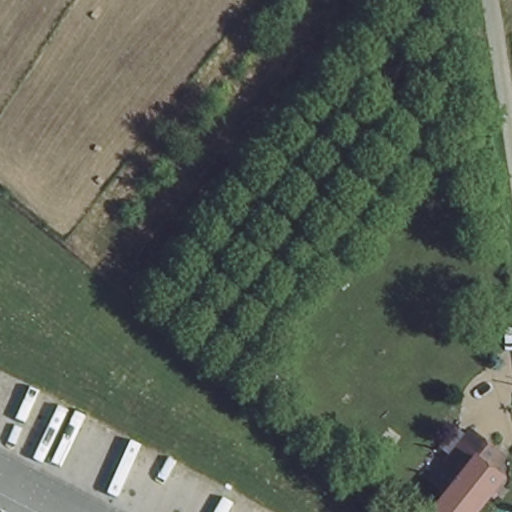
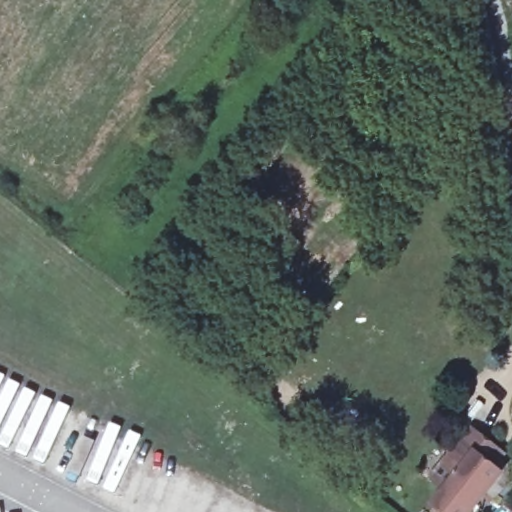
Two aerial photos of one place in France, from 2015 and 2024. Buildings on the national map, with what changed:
unchanged [(472,512),(460,512),(442,498),(469,464),(455,453),(477,426),(504,445),(494,458),(507,468),(472,512)]

